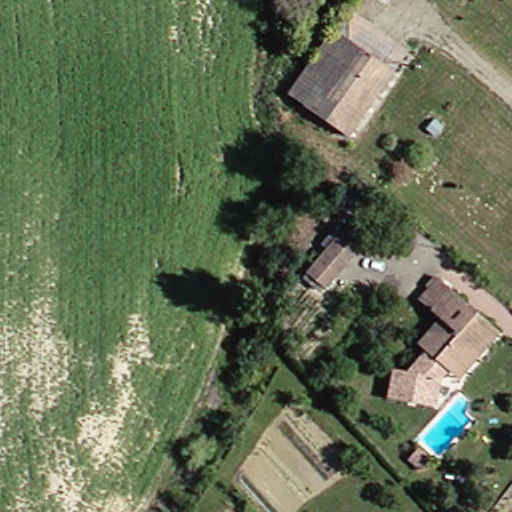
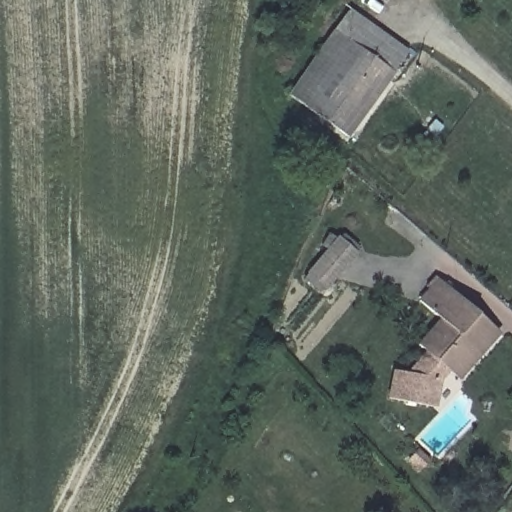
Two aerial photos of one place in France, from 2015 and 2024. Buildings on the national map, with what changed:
unchanged [(350,37),(367,14),(400,36),(408,41),(389,65),(344,131),(333,123),(305,103),(350,37)]
unchanged [(341,235),(362,250),(333,286),(313,270),(341,235)]
unchanged [(467,375),(458,367),(445,379),(425,360),(435,347),(429,341),(447,317),(428,296),(445,275),(471,296),(468,301),(479,311),(484,306),(498,320),(505,327),(467,375)]
unchanged [(442,397),(397,392),(400,363),(420,366),(425,360),(445,379),(442,397)]
unchanged [(411,464),(422,477),(413,485),(402,473),(411,464)]

